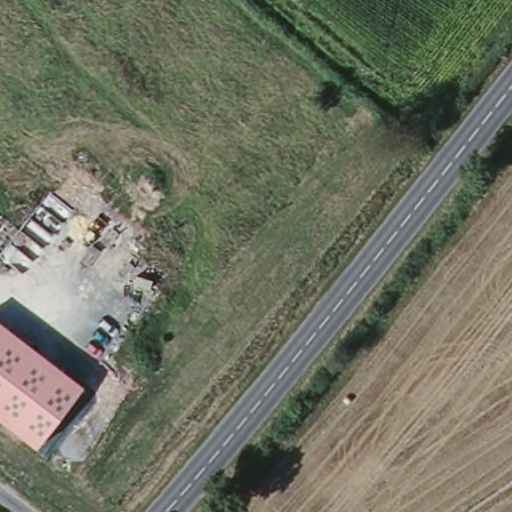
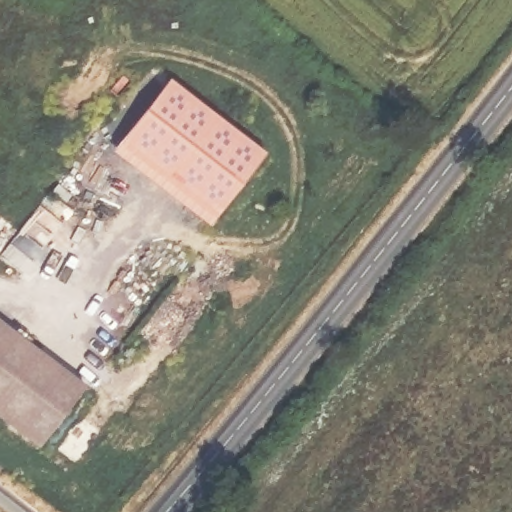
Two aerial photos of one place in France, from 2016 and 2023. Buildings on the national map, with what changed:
new [(163,82),(263,159),(216,221),(115,145),(163,82)]
unchanged [(0,417),(0,321),(84,385),(38,446),(0,417)]

